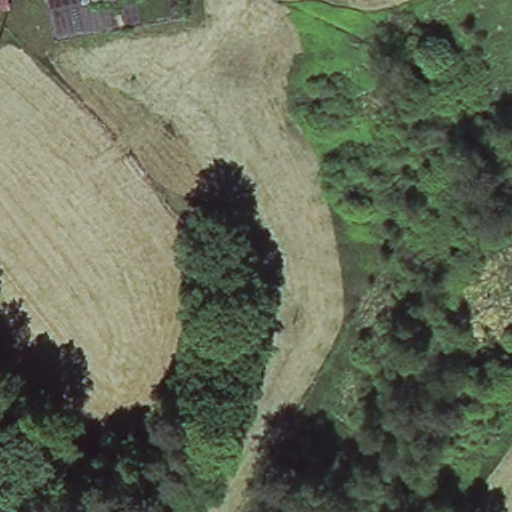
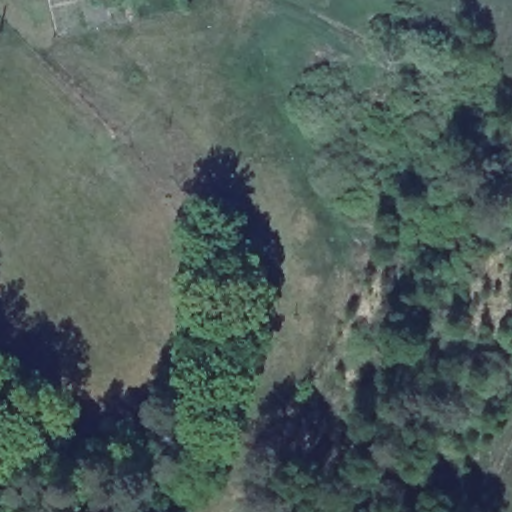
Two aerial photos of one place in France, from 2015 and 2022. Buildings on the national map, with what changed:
unchanged [(8,2),(0,4),(0,0),(7,0),(8,2)]

